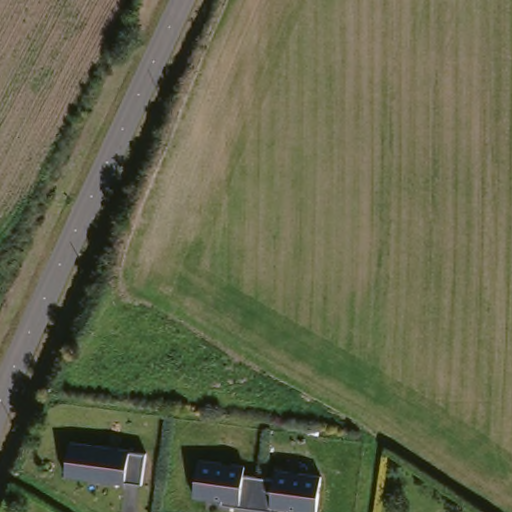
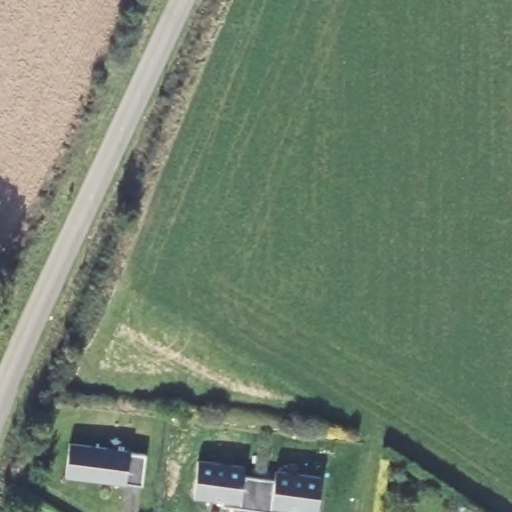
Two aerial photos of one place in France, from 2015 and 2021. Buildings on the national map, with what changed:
unchanged [(149,451),(144,485),(68,472),(73,440),(149,451)]
unchanged [(250,467),(248,475),(263,477),(260,509),(225,505),(225,501),(198,498),(202,461),(250,467)]
unchanged [(280,471),(327,478),(322,512),(309,512),(296,510),(296,512),(279,512),(260,509),(263,477),(279,480),(280,471)]

